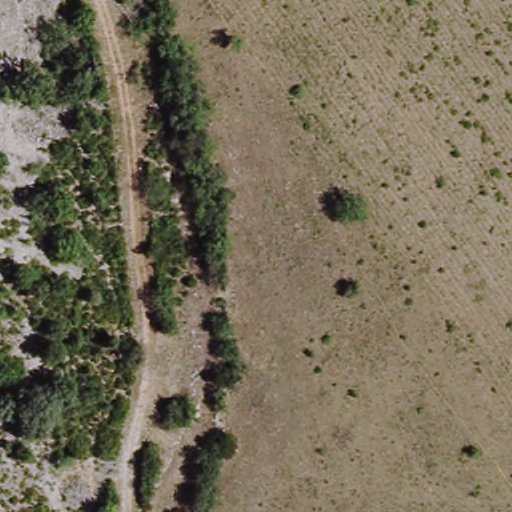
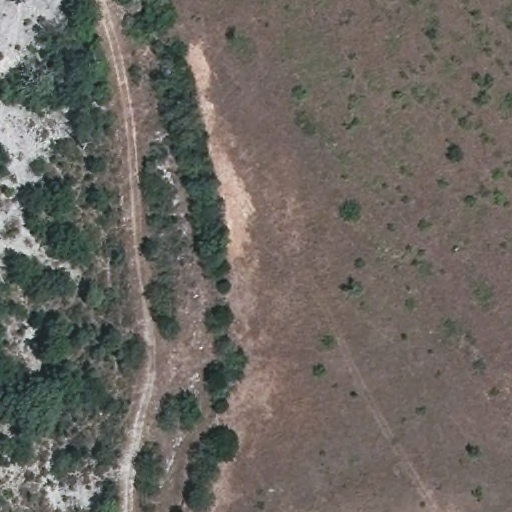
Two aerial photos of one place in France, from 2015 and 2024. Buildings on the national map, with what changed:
[]

